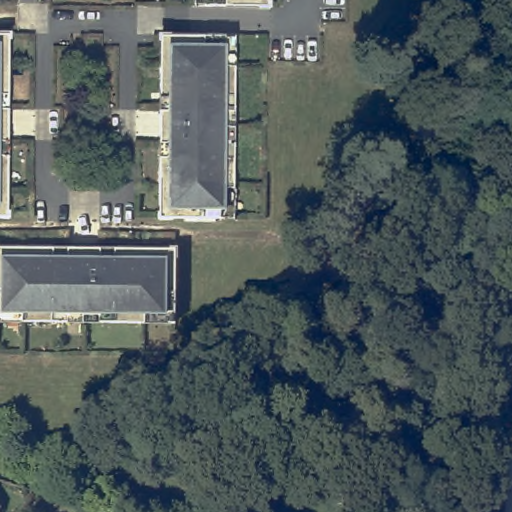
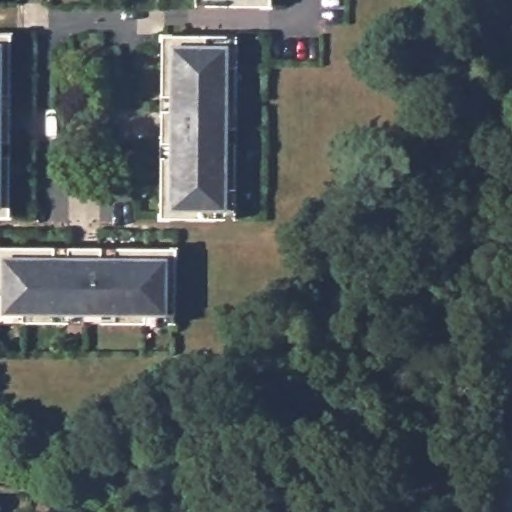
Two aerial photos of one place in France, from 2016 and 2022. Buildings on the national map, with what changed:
unchanged [(270,0),(270,5),(206,5),(196,5),(196,0),(270,0)]
unchanged [(161,217),(161,157),(161,143),(161,141),(161,110),(161,96),(162,35),(191,35),(226,35),(236,35),(236,65),(236,111),(236,142),(235,188),(235,218),(225,218),(161,217)]
unchanged [(5,99),(5,113),(5,114),(5,145),(5,146),(5,160),(4,222),(0,222),(0,37),(6,37),(5,99)]
unchanged [(69,321),(22,321),(0,321),(0,247),(54,247),(67,247),(69,247),(100,247),(101,247),(115,247),(176,248),(175,312),(175,322),(145,322),(100,322),(69,321)]
unchanged [(0,498),(6,499),(9,506),(7,512),(0,512),(0,498)]

